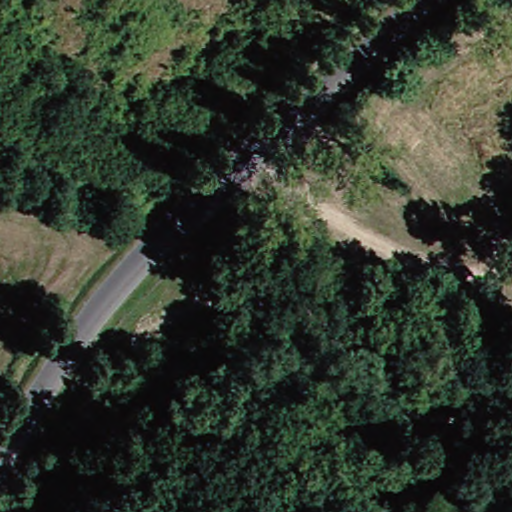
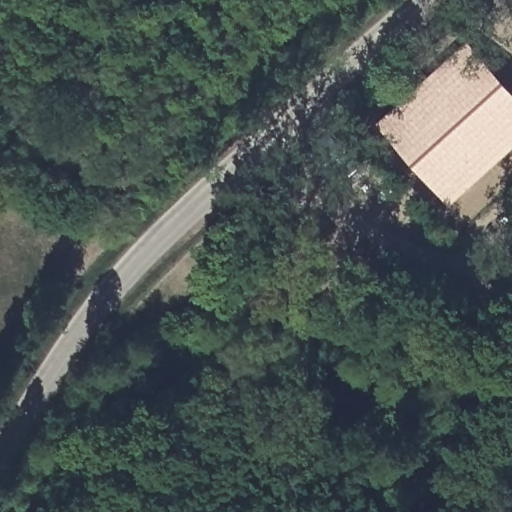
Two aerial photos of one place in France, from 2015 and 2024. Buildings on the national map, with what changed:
new [(378,122),(470,40),(512,88),(512,150),(450,204),(378,122)]

